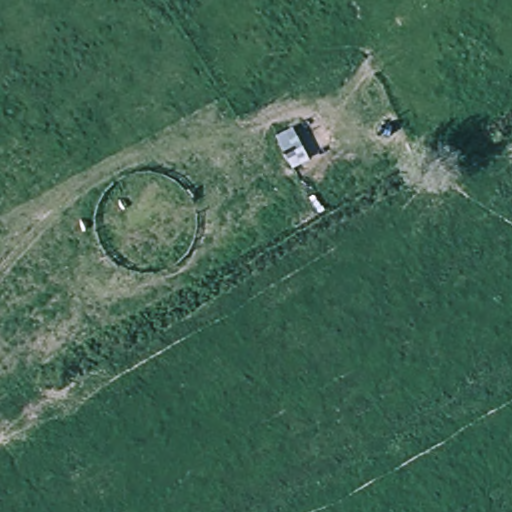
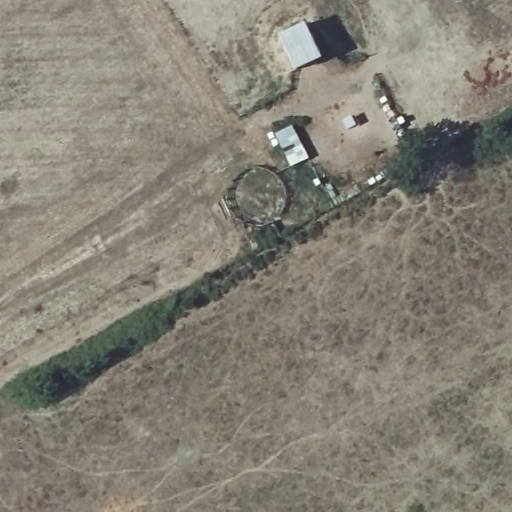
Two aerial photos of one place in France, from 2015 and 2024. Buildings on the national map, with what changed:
new [(281,34),(307,22),(325,59),(298,70),(281,34)]

